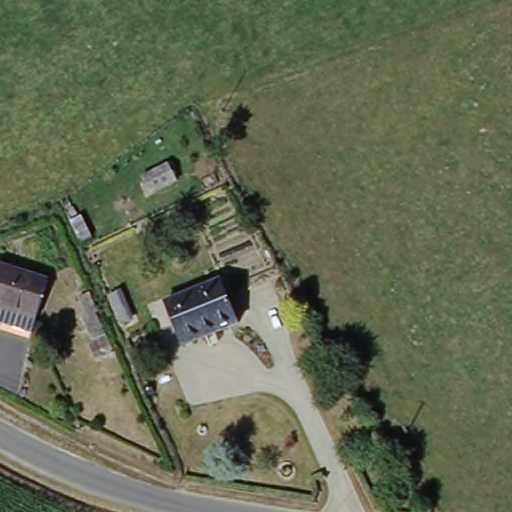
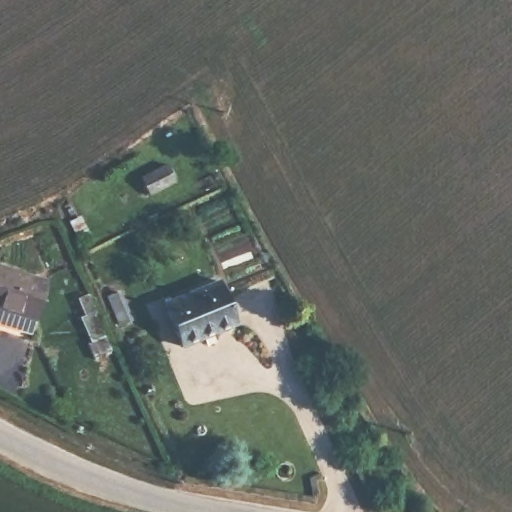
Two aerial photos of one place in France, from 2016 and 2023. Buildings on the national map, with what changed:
unchanged [(185,181),(153,196),(140,177),(172,161),(185,181)]
unchanged [(49,277),(36,313),(31,328),(0,318),(0,260),(49,277)]
unchanged [(229,281),(244,322),(187,343),(172,304),(229,281)]

